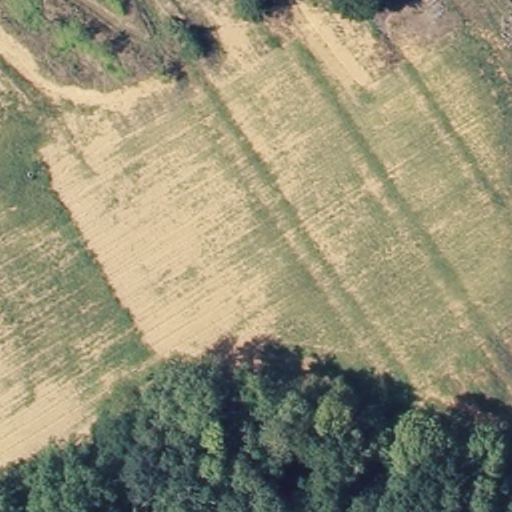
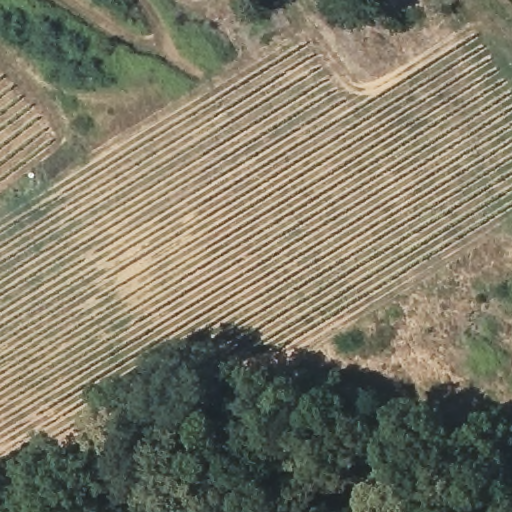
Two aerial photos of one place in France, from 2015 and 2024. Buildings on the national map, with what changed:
[]

